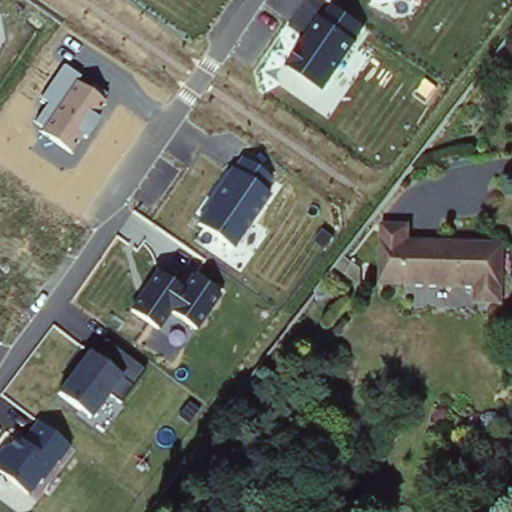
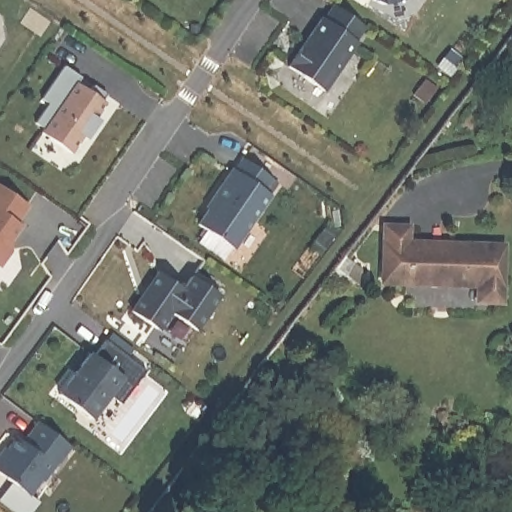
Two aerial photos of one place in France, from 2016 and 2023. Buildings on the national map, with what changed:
unchanged [(325,92),(288,68),(330,5),(365,27),(325,92)]
unchanged [(70,151),(41,130),(44,125),(36,121),(47,104),(42,100),(64,67),(82,80),(78,85),(106,105),(70,151)]
unchanged [(266,193),(271,196),(234,249),(198,223),(241,161),(273,183),(266,193)]
new [(0,269),(0,192),(3,189),(41,217),(4,272),(0,269)]
unchanged [(407,226),(407,241),(501,246),(499,301),(476,300),(475,286),(381,280),(383,225),(407,226)]
unchanged [(197,330),(171,313),(159,331),(129,310),(156,268),(182,287),(190,275),(221,296),(197,330)]
unchanged [(121,405),(108,396),(91,418),(57,391),(88,350),(103,362),(115,346),(146,370),(121,405)]
unchanged [(0,475),(0,453),(15,434),(22,439),(35,421),(70,448),(30,497),(0,475)]

